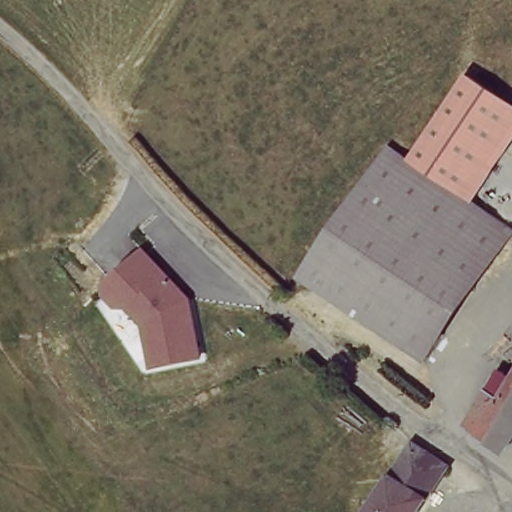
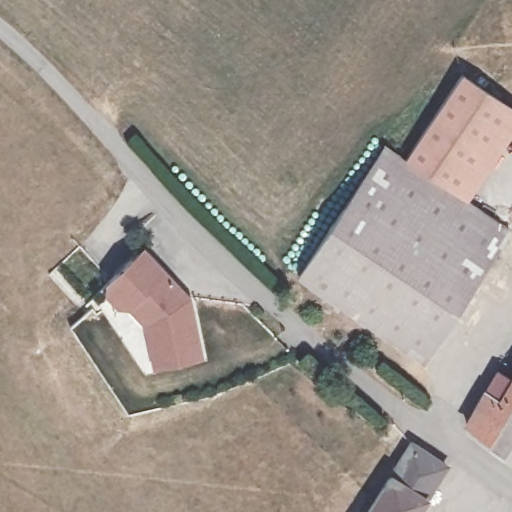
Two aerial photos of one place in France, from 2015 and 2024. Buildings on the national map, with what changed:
unchanged [(462,74),(512,107),(512,138),(470,202),(407,159),(462,74)]
unchanged [(299,279),(389,146),(407,159),(470,202),(512,230),(512,232),(424,362),(299,279)]
unchanged [(188,292),(203,356),(149,367),(140,324),(101,286),(140,246),(188,292)]
unchanged [(470,423),(490,390),(507,401),(512,393),(512,437),(507,445),(470,423)]
unchanged [(422,445),(456,466),(424,512),(374,512),(422,445)]

